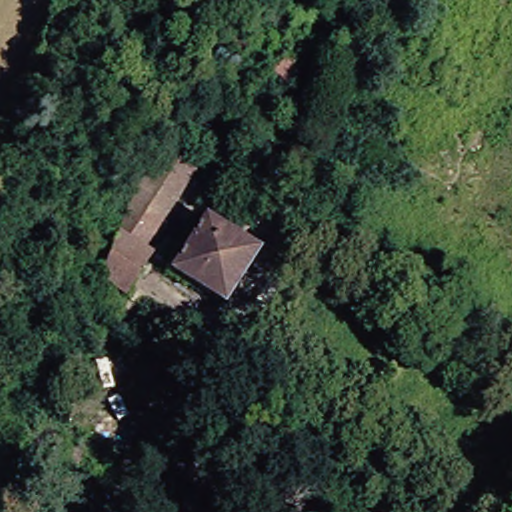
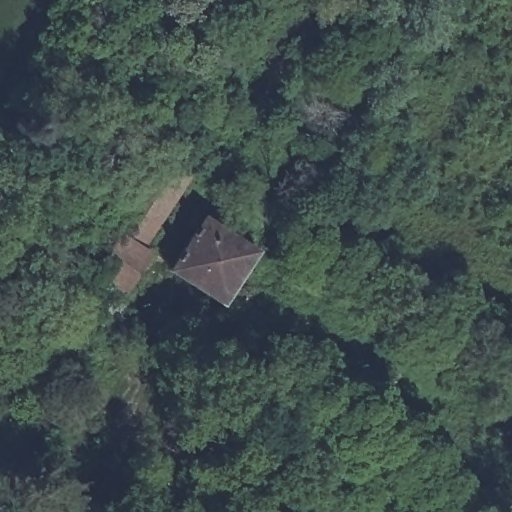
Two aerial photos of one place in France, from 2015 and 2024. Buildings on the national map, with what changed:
unchanged [(102,280),(125,242),(104,228),(154,150),(190,173),(139,250),(149,256),(125,295),(102,280)]
unchanged [(164,272),(200,219),(251,255),(217,307),(164,272)]

